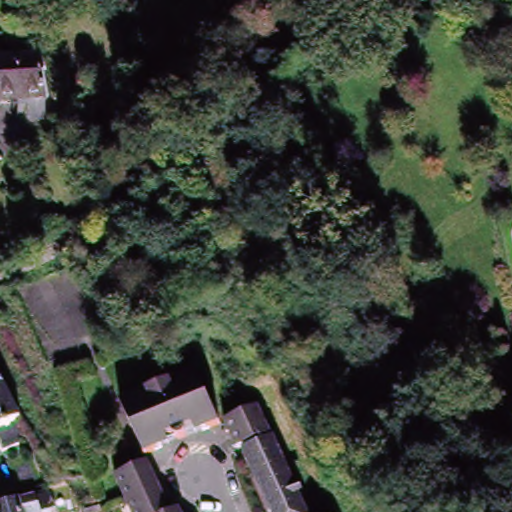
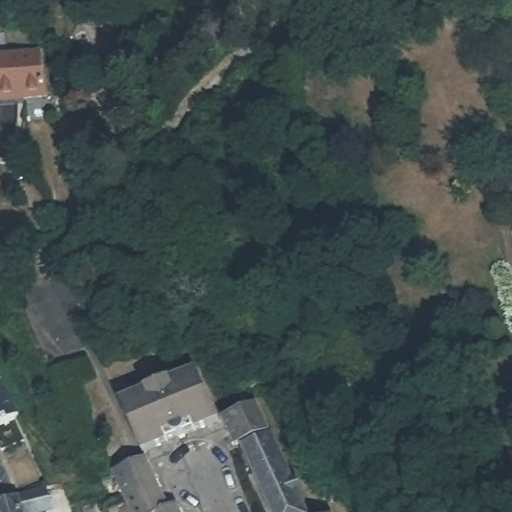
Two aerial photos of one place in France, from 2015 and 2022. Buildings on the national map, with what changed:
unchanged [(21,34),(25,58),(38,56),(45,101),(22,105),(0,108),(0,37),(21,34)]
unchanged [(144,459),(116,406),(188,368),(215,420),(198,429),(188,434),(174,442),(162,449),(144,459)]
unchanged [(25,430),(0,442),(0,380),(16,412),(25,430)]
unchanged [(256,398),(268,426),(236,442),(224,414),(256,398)]
unchanged [(243,446),(271,433),(310,512),(274,512),(243,446)]
unchanged [(127,507),(115,478),(146,465),(159,493),(167,512),(130,512),(127,507)]
unchanged [(47,487),(52,511),(48,512),(0,512),(0,499),(47,487)]
unchanged [(98,508),(99,512),(82,512),(98,508)]
unchanged [(182,511),(183,512),(180,512),(182,511)]

